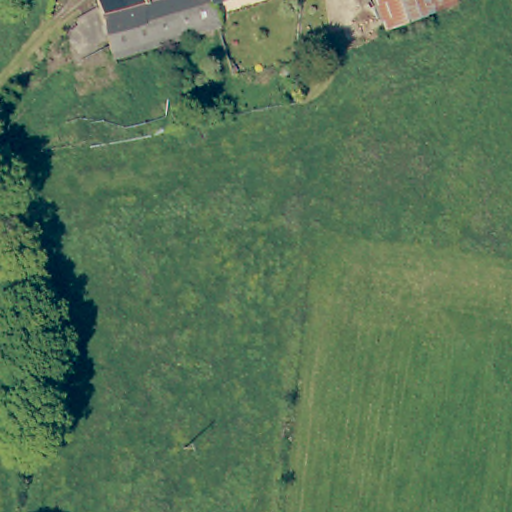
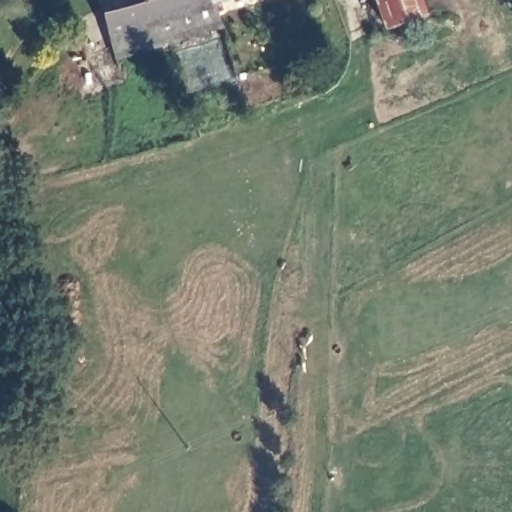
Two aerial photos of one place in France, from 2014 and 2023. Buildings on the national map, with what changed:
unchanged [(99,0),(238,0),(212,8),(219,30),(145,52),(117,60),(104,20),(99,0)]
unchanged [(390,34),(376,0),(453,0),(454,9),(427,19),(390,34)]

